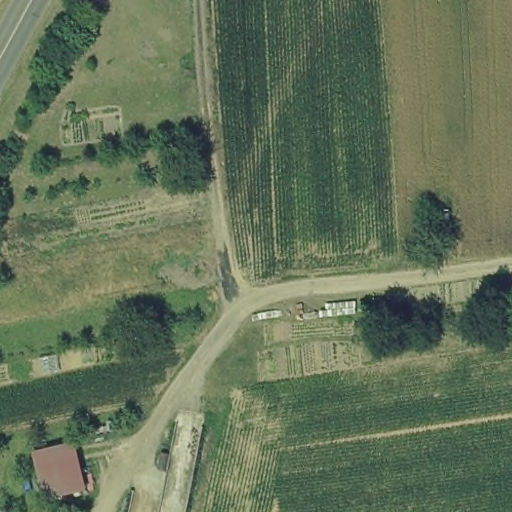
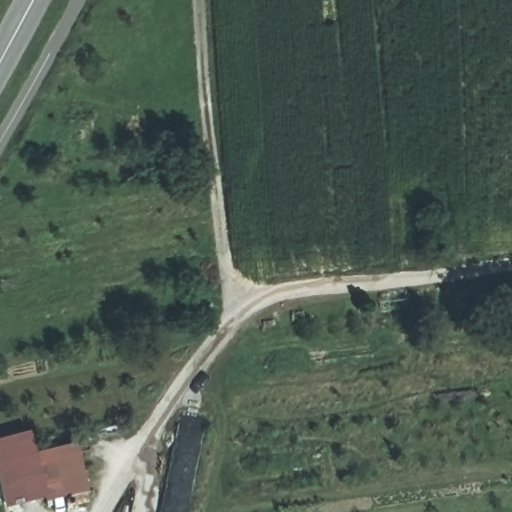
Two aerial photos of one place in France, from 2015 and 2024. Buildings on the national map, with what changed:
new [(38,453),(28,456),(40,502),(5,510),(0,490),(0,439),(31,430),(38,453)]
unchanged [(40,502),(28,456),(73,442),(88,489),(40,502)]

